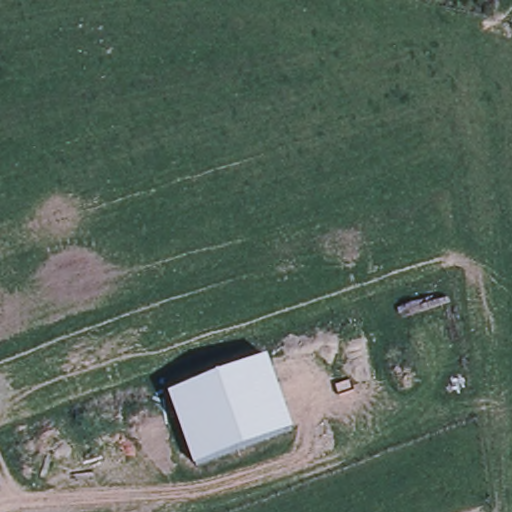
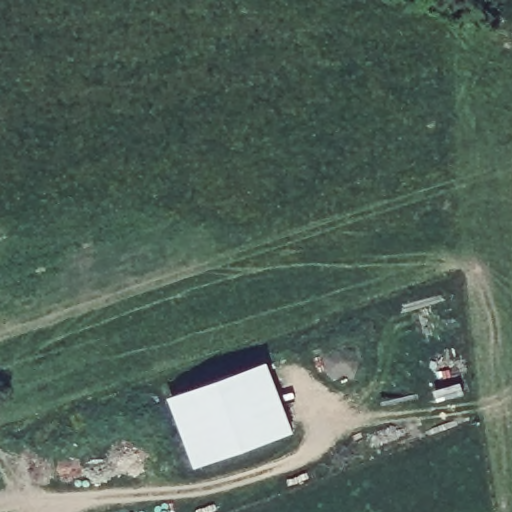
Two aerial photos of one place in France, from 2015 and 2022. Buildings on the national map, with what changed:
unchanged [(267,361),(295,431),(196,468),(170,398),(267,361)]

